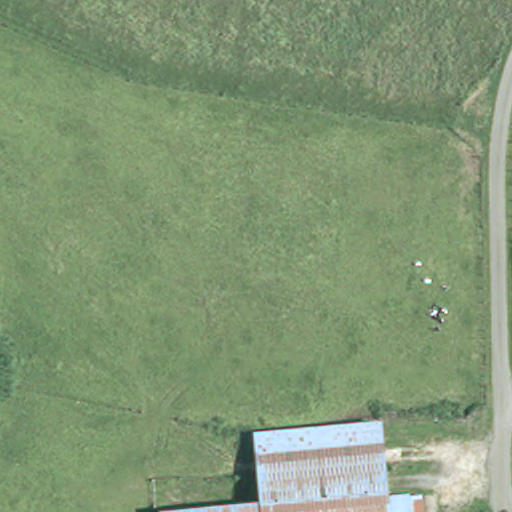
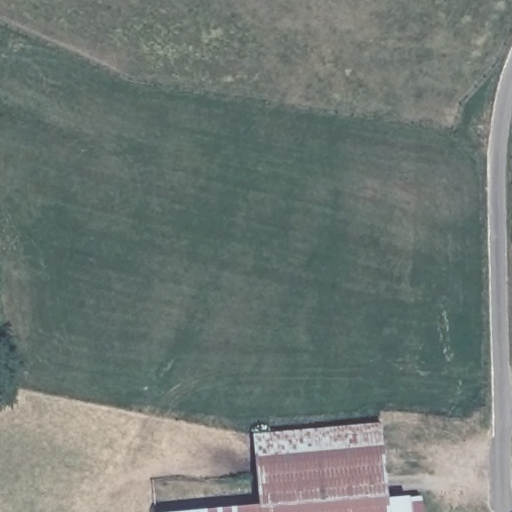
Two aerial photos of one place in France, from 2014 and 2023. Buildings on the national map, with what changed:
unchanged [(258,434),(385,424),(387,445),(260,455),(258,434)]
unchanged [(425,512),(264,512),(264,505),(260,455),(387,445),(391,494),(410,494),(424,494),(425,512)]
unchanged [(264,505),(264,512),(183,512),(264,505)]

